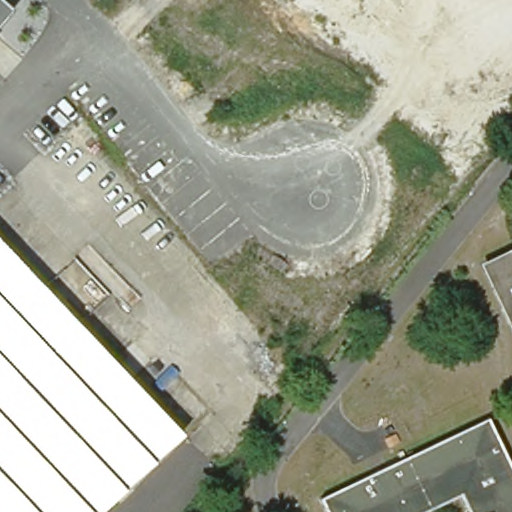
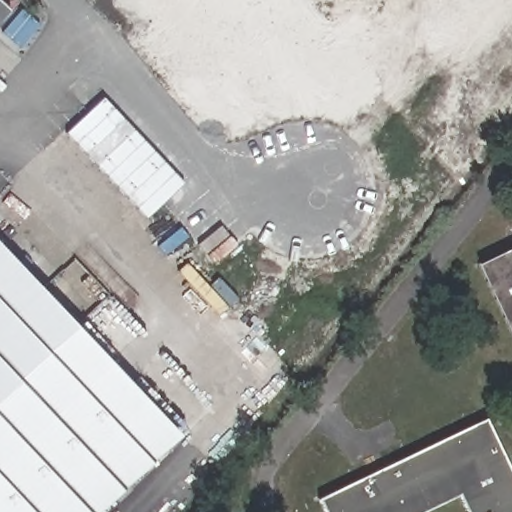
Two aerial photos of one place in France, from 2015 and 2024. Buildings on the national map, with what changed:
unchanged [(9,10),(3,17),(0,20),(0,2),(9,10)]
new [(40,25),(21,47),(2,32),(20,10),(40,25)]
new [(185,183),(146,219),(66,133),(104,97),(185,183)]
unchanged [(6,254),(23,272),(40,290),(109,362),(179,436),(100,512),(0,512),(0,248),(6,254)]
unchanged [(512,256),(512,322),(486,268),(512,256)]
unchanged [(487,418),(512,470),(512,512),(467,512),(460,496),(426,512),(324,512),(319,500),(487,418)]
unchanged [(116,512),(100,512),(179,436),(187,445),(116,512)]

